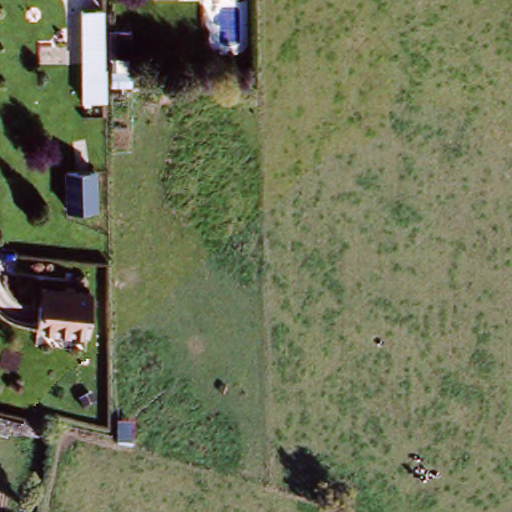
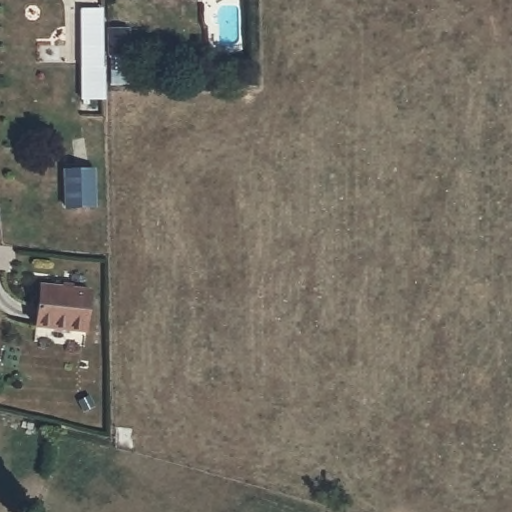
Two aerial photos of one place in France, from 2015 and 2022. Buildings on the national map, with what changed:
unchanged [(83,16),(100,16),(98,89),(98,103),(81,104),(81,88),(83,16)]
unchanged [(93,171),(93,208),(64,207),(65,170),(93,171)]
unchanged [(91,292),(85,335),(36,328),(41,286),(91,292)]

